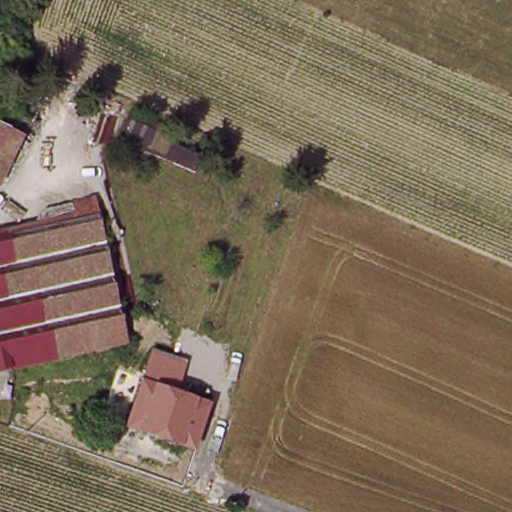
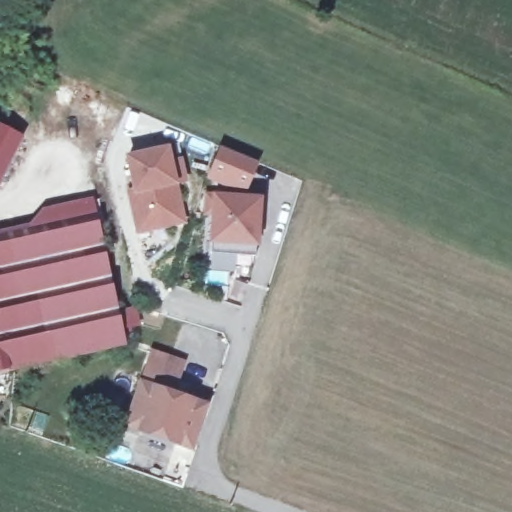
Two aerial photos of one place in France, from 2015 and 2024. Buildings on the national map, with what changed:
unchanged [(20,131),(0,179),(0,125),(20,131)]
new [(218,150),(252,165),(241,192),(206,177),(218,150)]
new [(166,155),(169,168),(179,165),(183,185),(173,188),(183,227),(138,239),(128,199),(134,197),(126,164),(166,155)]
new [(206,200),(259,203),(256,260),(211,258),(213,219),(206,218),(206,200)]
unchanged [(115,312),(123,346),(9,371),(0,373),(0,237),(16,234),(12,209),(23,206),(26,218),(91,203),(115,312)]
unchanged [(198,406),(184,449),(126,430),(139,387),(198,406)]

